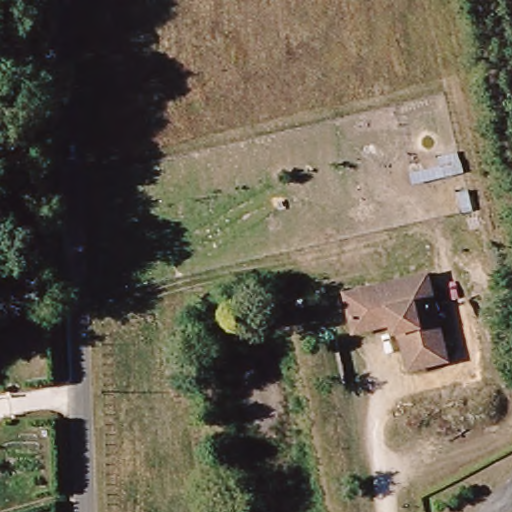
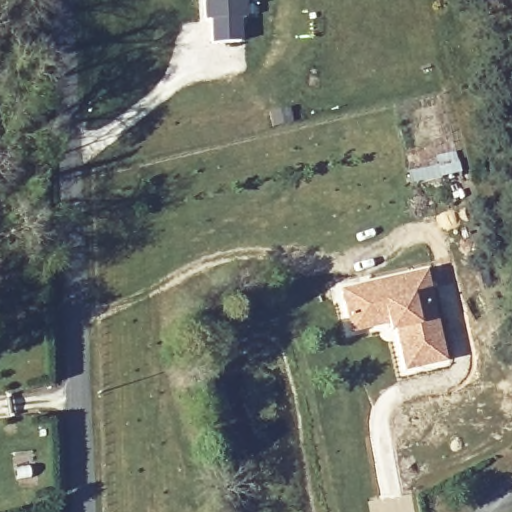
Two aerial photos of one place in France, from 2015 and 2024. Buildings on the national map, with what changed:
new [(247,21),(241,21),(242,44),(214,46),(214,23),(207,23),(207,1),(202,2),(201,0),(246,0),(247,21)]
unchanged [(409,364),(401,326),(394,326),(392,319),(355,327),(348,298),(347,291),(346,287),(376,280),(428,268),(429,272),(450,354),(409,364)]
demolished [(200,512),(193,512),(200,511),(200,512)]

